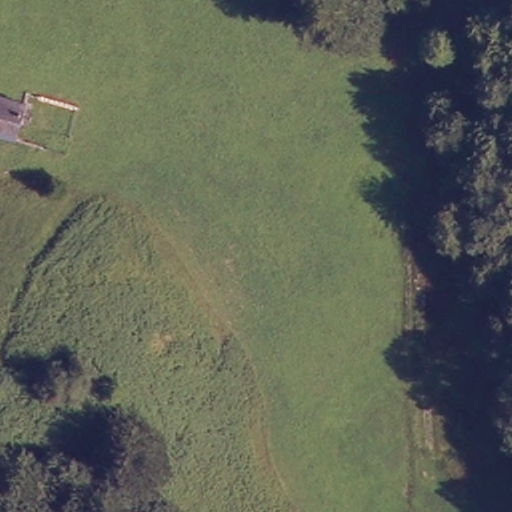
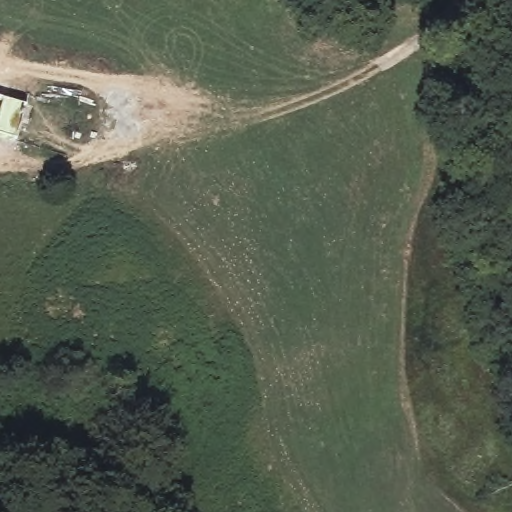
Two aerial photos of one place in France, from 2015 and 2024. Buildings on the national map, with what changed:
unchanged [(30,104),(25,140),(0,133),(0,95),(30,104)]

